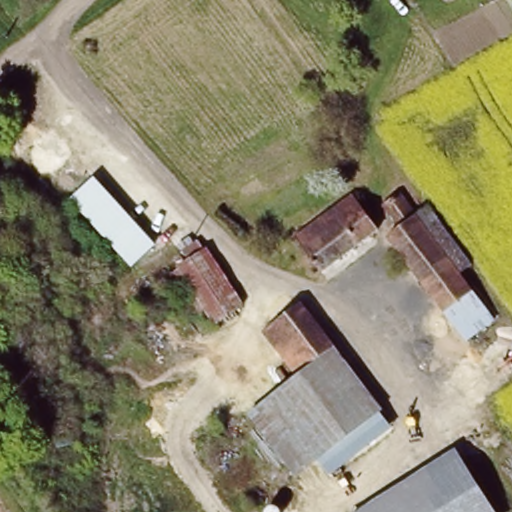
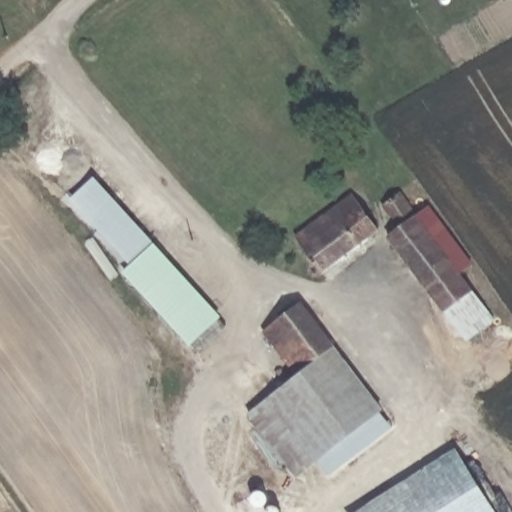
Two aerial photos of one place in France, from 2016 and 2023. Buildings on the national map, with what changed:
unchanged [(93,177),(155,244),(130,267),(69,198),(93,177)]
unchanged [(465,262),(453,272),(465,287),(486,317),(459,338),(384,237),(393,227),(376,207),(393,192),(413,214),(423,206),(465,262)]
unchanged [(346,194),(372,229),(316,274),(288,239),(346,194)]
demolished [(243,299),(216,315),(183,258),(208,243),(243,299)]
new [(190,347),(123,273),(130,267),(155,244),(156,244),(223,317),(190,347)]
unchanged [(301,306),(332,348),(295,376),(265,334),(301,306)]
unchanged [(332,348),(380,412),(325,455),(276,388),(295,376),(332,348)]
unchanged [(325,455),(307,467),(260,402),(276,388),(325,455)]
unchanged [(380,412),(392,428),(336,471),(325,455),(380,412)]
unchanged [(455,451),(495,512),(360,512),(455,451)]

